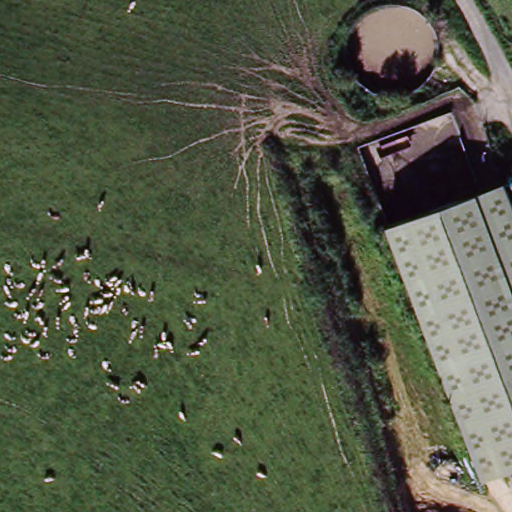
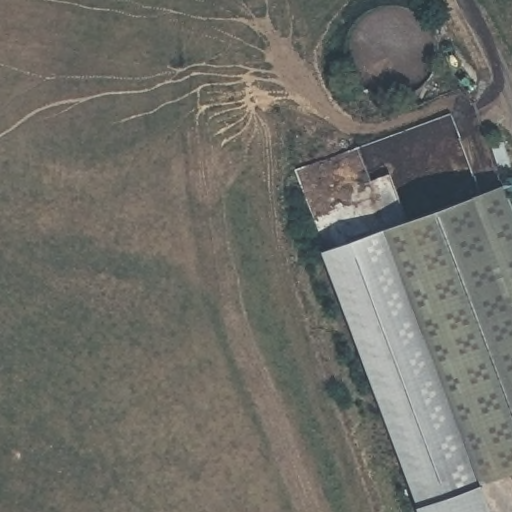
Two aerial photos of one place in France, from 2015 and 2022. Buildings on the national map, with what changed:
unchanged [(512,213),(512,467),(475,480),(384,224),(501,183),(512,213)]
new [(495,512),(419,512),(417,508),(323,251),(385,226),(475,480),(479,478),(484,484),(495,512)]

